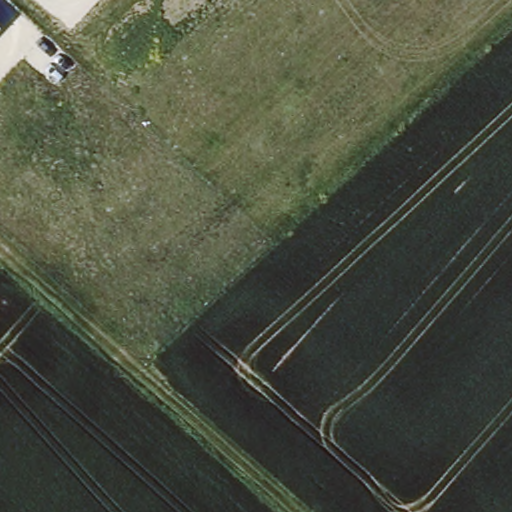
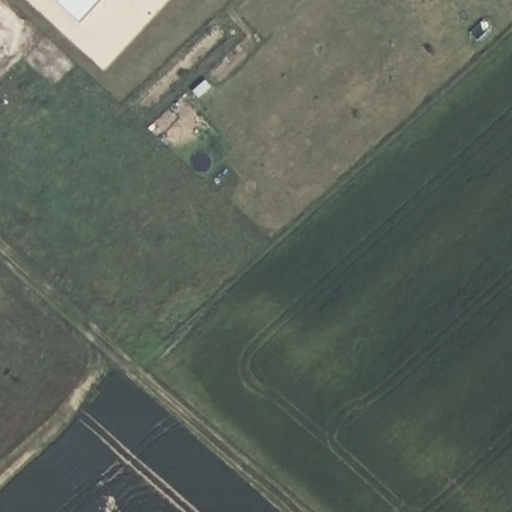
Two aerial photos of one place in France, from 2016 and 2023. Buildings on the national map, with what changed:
new [(80,22),(56,0),(101,0),(80,22)]

